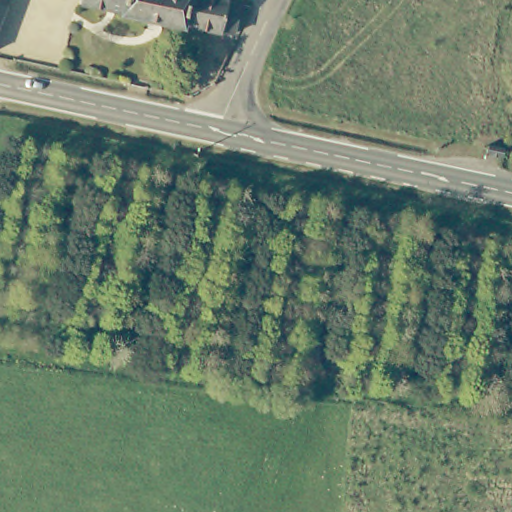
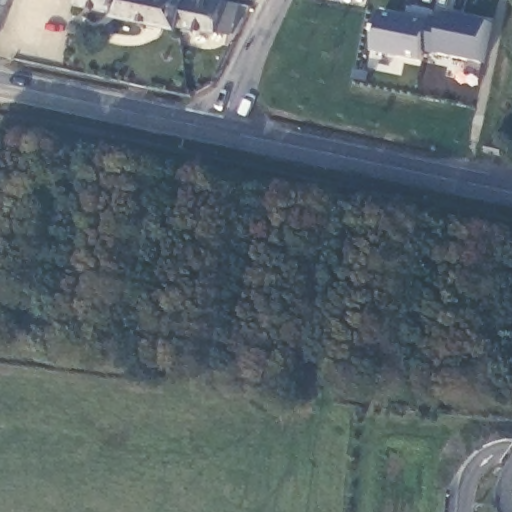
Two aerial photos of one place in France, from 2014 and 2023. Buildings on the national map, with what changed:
unchanged [(0,10),(0,0),(4,0),(0,10)]
unchanged [(230,31),(77,1),(78,0),(231,0),(236,1),(230,31)]
new [(382,10),(445,21),(450,15),(490,22),(481,63),(423,52),(421,61),(375,53),(382,10)]

